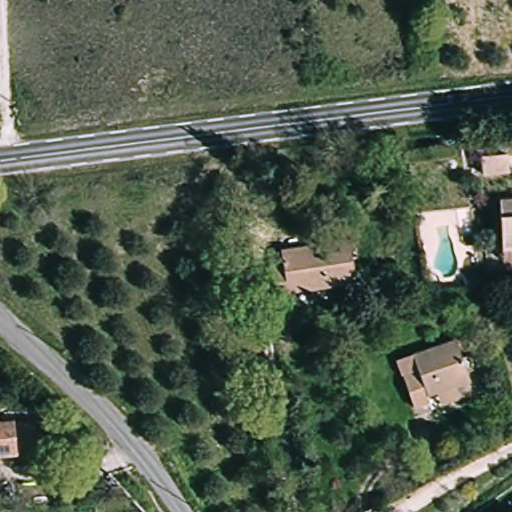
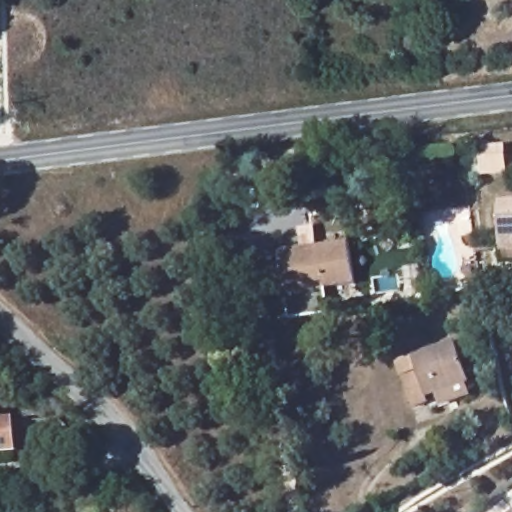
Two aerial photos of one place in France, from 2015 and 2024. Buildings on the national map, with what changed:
unchanged [(476,169),(499,164),(502,180),(479,185),(476,169)]
unchanged [(494,207),(512,205),(512,265),(500,267),(499,255),(494,207)]
unchanged [(350,283),(284,291),(284,298),(268,299),(264,270),(280,267),(278,255),(345,246),(350,283)]
unchanged [(424,399),(426,405),(412,410),(395,364),(449,344),(458,373),(464,384),(457,388),(463,404),(443,411),(437,395),(424,399)]
unchanged [(56,459),(0,462),(0,429),(53,424),(56,459)]

